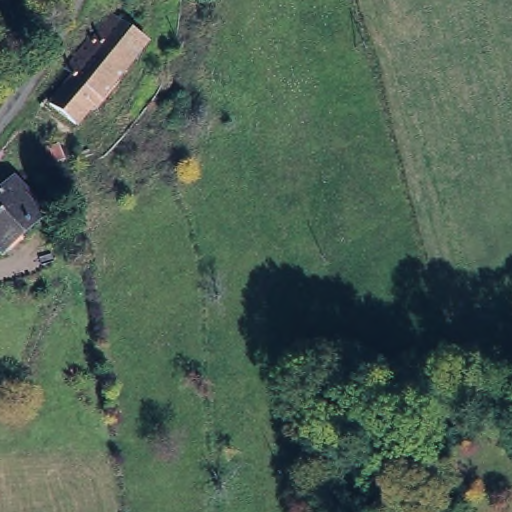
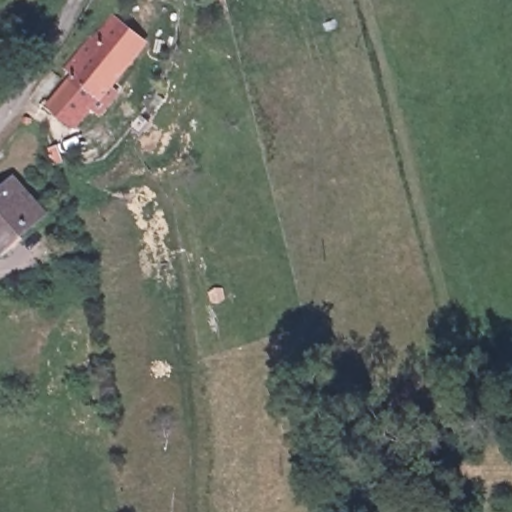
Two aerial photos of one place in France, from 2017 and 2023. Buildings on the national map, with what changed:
unchanged [(148,35),(78,131),(43,109),(114,14),(148,35)]
unchanged [(50,214),(0,260),(0,180),(13,168),(50,214)]

